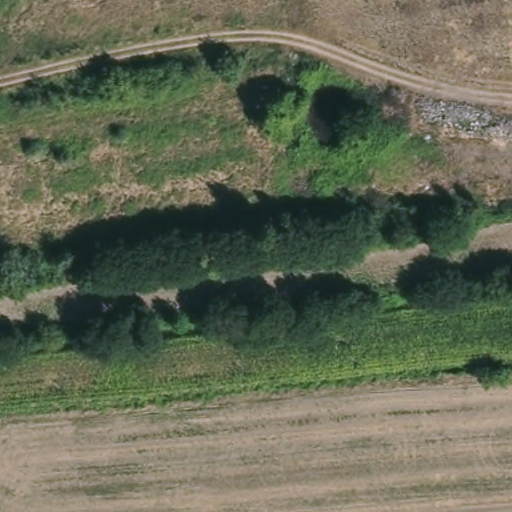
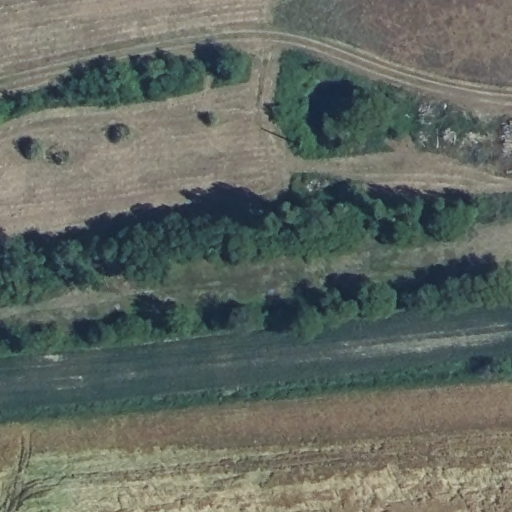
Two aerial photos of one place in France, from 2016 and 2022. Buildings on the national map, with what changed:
[]

